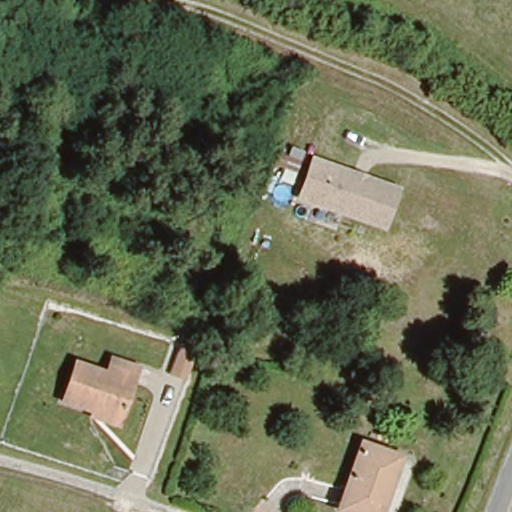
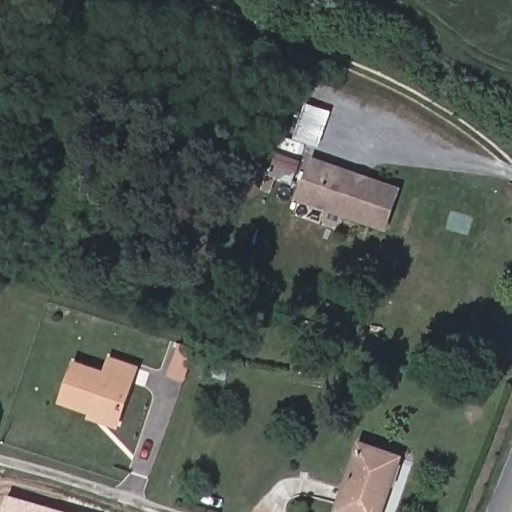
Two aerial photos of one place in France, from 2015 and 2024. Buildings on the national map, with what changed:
unchanged [(402,188),(387,233),(295,200),(310,156),(402,188)]
unchanged [(163,349),(178,355),(168,381),(153,375),(163,349)]
unchanged [(59,398),(71,365),(101,376),(105,364),(129,373),(113,418),(59,398)]
unchanged [(396,452),(376,512),(352,512),(333,506),(356,438),(396,452)]
new [(8,494),(70,512),(2,512),(8,494)]

